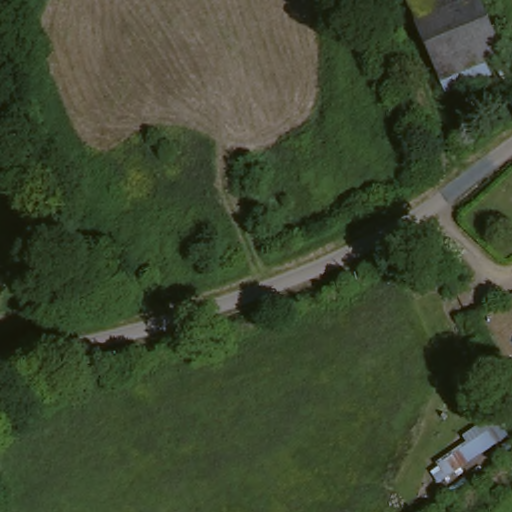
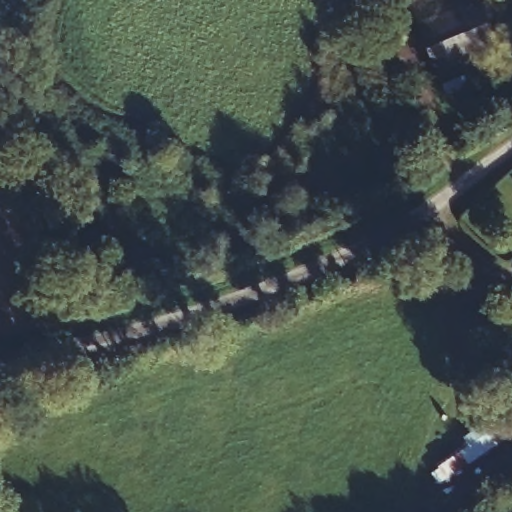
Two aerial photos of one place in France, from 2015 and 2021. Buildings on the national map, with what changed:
unchanged [(435,71),(409,0),(478,0),(496,47),(435,71)]
unchanged [(512,378),(512,396),(503,383),(512,378)]
unchanged [(429,467),(497,425),(512,448),(512,449),(442,493),(429,467)]

